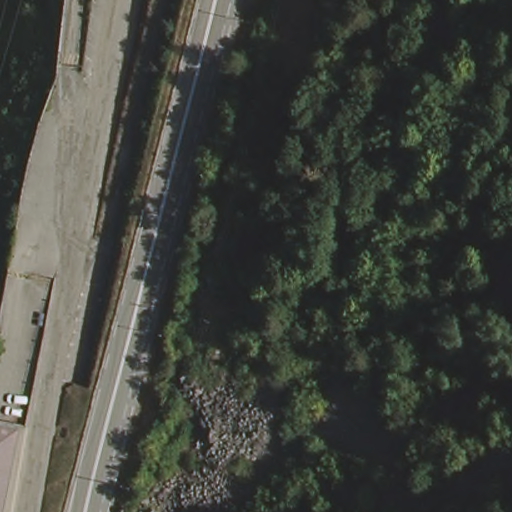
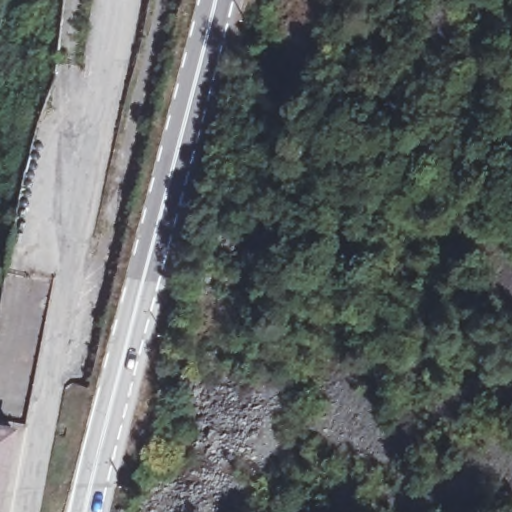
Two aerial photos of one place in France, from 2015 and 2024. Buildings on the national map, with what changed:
unchanged [(0,439),(0,419),(3,419),(0,439)]

